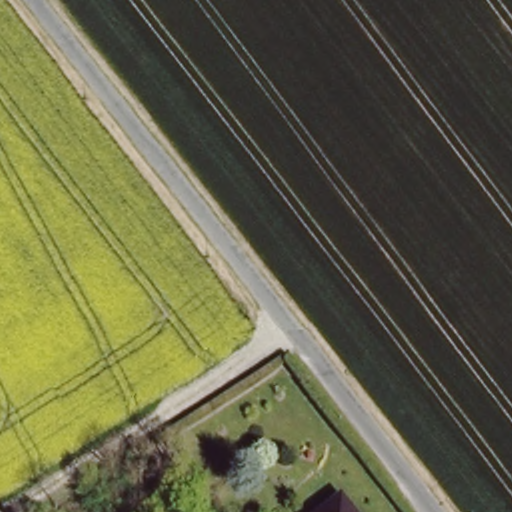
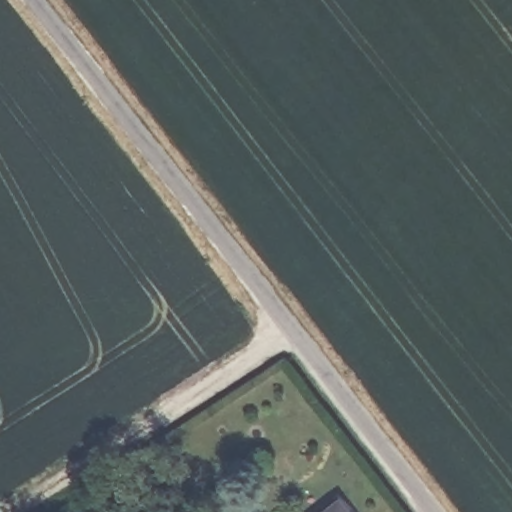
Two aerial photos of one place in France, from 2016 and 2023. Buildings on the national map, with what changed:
unchanged [(350,512),(323,512),(340,500),(350,512)]

